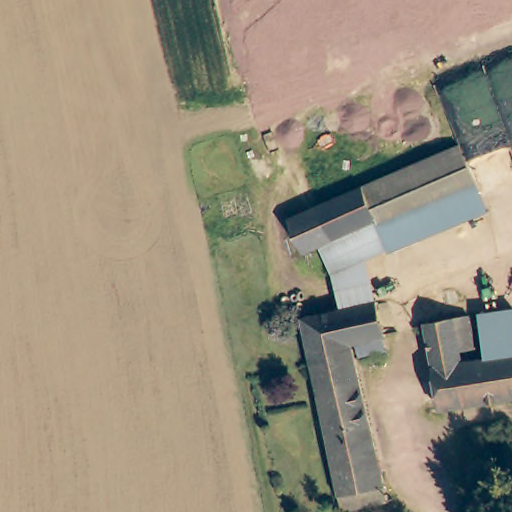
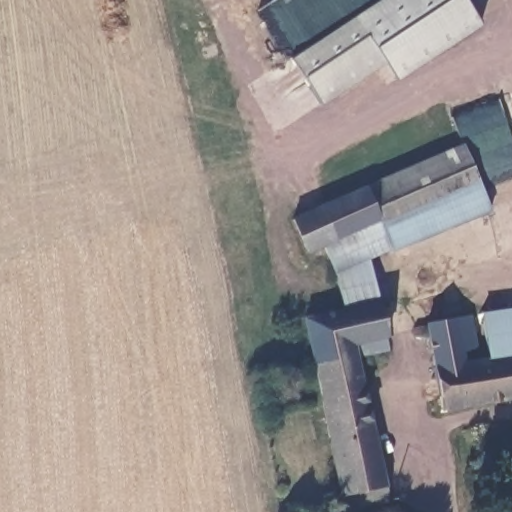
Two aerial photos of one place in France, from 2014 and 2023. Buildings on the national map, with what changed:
new [(378,0),(461,0),(478,26),(392,82),(381,64),(318,106),(287,59),(378,0)]
unchanged [(455,139),(485,199),(393,247),(390,242),(365,256),(378,305),(345,312),(326,243),(378,218),(362,186),(455,139)]
unchanged [(306,253),(290,221),(362,186),(378,218),(326,243),(306,253)]
unchanged [(390,350),(366,358),(362,345),(353,348),(393,497),(349,512),(332,448),(316,453),(308,426),(326,421),(301,321),(345,312),(378,305),(390,350)]
unchanged [(512,356),(487,362),(476,317),(510,309),(512,315),(512,356)]
unchanged [(512,397),(440,415),(420,331),(463,320),(471,352),(457,356),(460,369),(487,362),(512,356),(512,397)]

